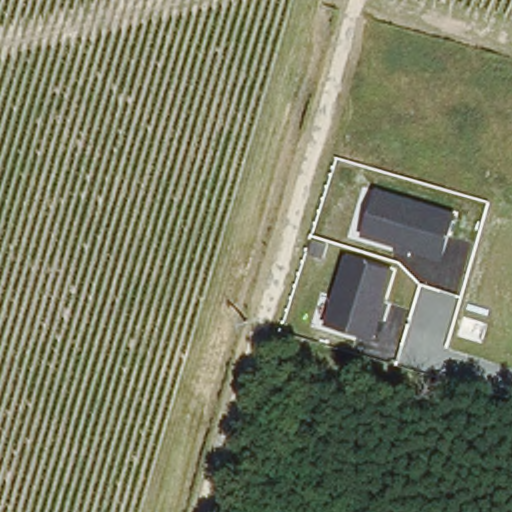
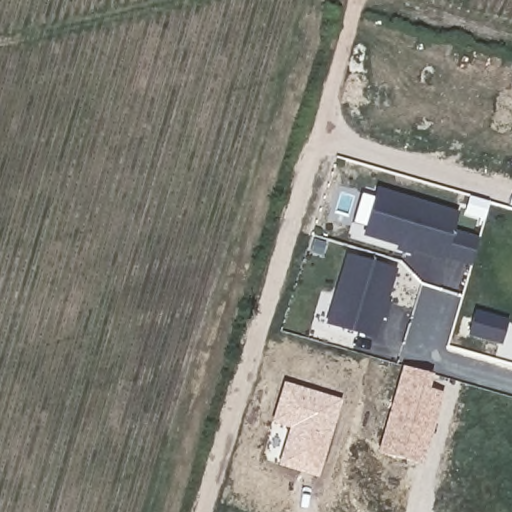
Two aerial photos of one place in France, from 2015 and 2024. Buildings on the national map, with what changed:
unchanged [(444,259),(363,237),(377,189),(458,212),(444,259)]
unchanged [(376,340),(325,326),(345,255),(397,270),(376,340)]
new [(432,375),(427,389),(442,393),(421,464),(377,451),(400,367),(432,375)]
new [(341,401),(317,478),(277,467),(288,428),(271,423),(282,382),(341,401)]

